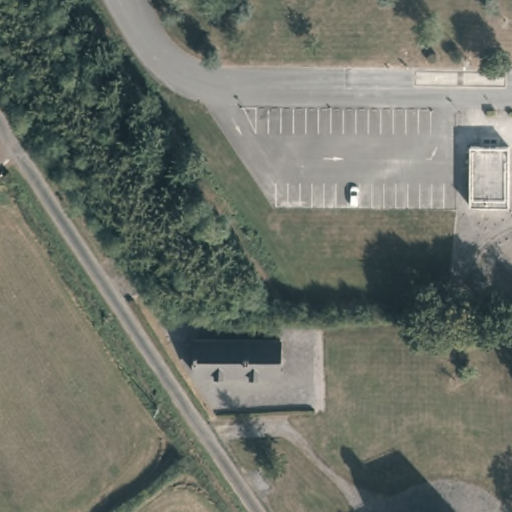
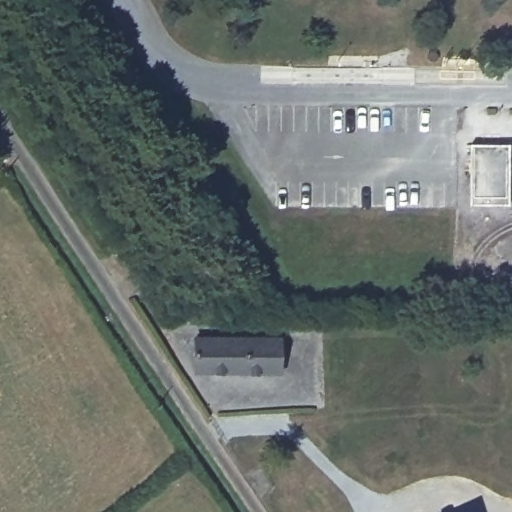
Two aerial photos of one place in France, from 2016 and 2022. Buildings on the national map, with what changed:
unchanged [(469,207),(469,146),(511,146),(511,208),(469,207)]
unchanged [(288,371),(234,371),(196,370),(197,334),(286,334),(288,371)]

